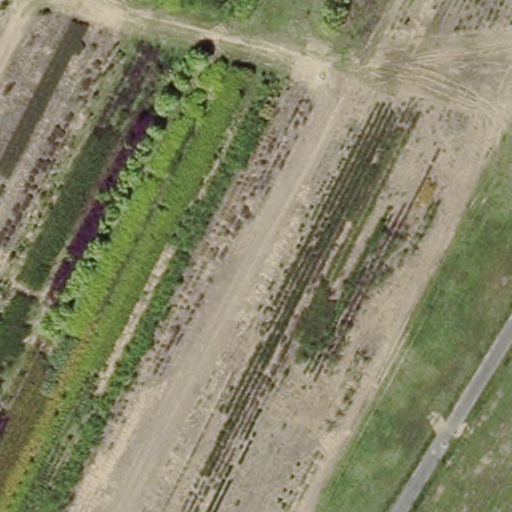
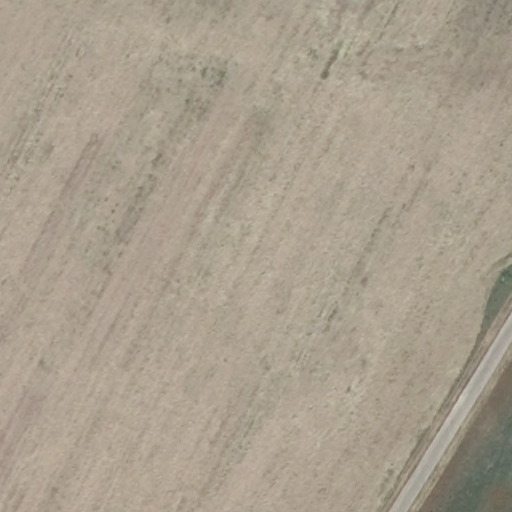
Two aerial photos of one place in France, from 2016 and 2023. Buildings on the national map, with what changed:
[]

